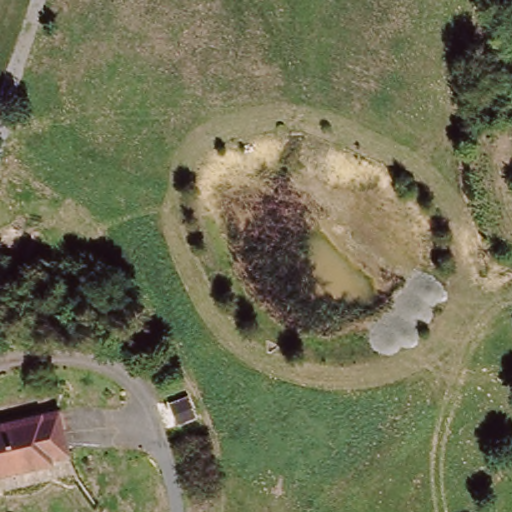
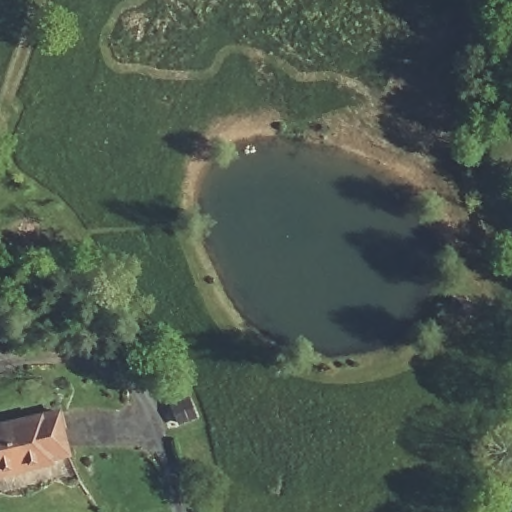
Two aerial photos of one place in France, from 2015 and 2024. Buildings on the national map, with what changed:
unchanged [(56,409),(68,454),(49,459),(51,464),(28,470),(0,478),(0,424),(56,409)]

